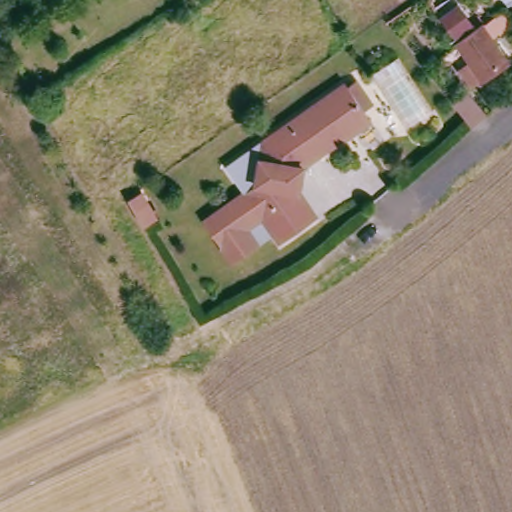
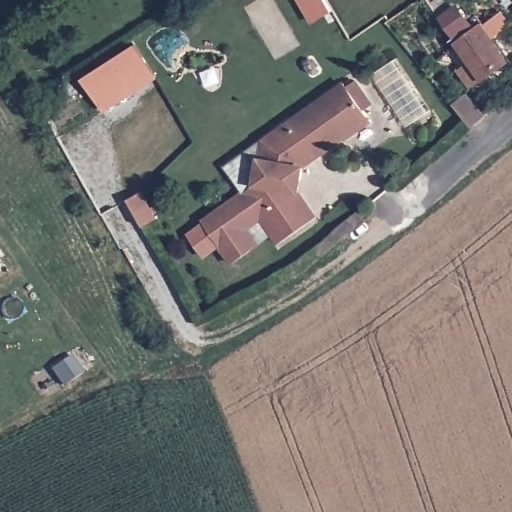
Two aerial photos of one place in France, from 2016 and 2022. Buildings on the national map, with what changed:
unchanged [(486,28),(512,62),(512,64),(490,83),(476,66),(466,73),(451,53),(461,46),(486,28)]
new [(136,44),(159,79),(104,113),(81,78),(136,44)]
unchanged [(298,193),(315,224),(275,246),(261,219),(244,228),(253,245),(236,255),(225,260),(212,235),(201,214),(210,210),(247,191),(260,185),(272,135),(337,90),(340,93),(348,87),(354,96),(362,108),(354,114),(361,124),(365,130),(338,147),(336,145),(297,170),(298,193)]
unchanged [(132,196),(148,222),(135,229),(120,205),(132,196)]

